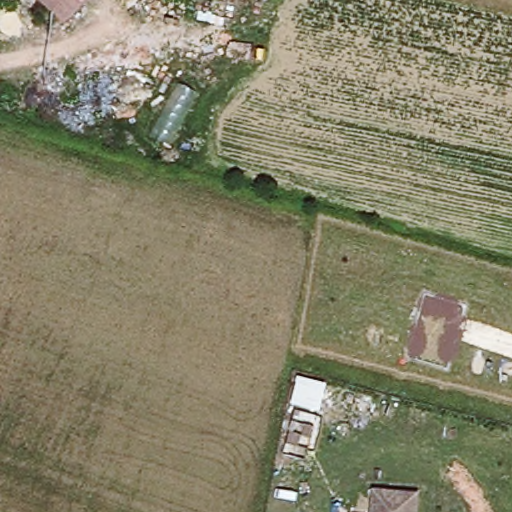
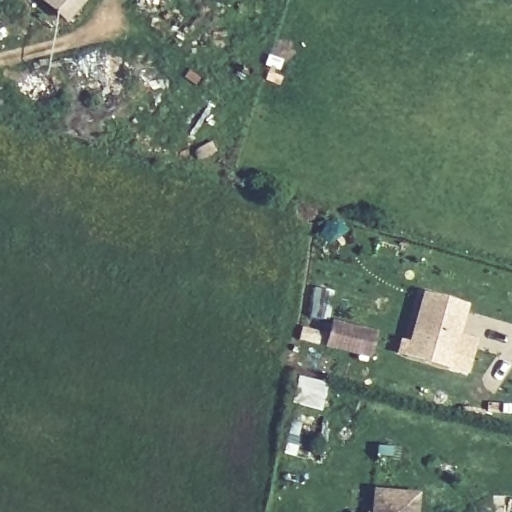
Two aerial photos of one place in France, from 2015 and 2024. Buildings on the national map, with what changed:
unchanged [(66,21),(42,0),(84,0),(66,21)]
new [(467,304),(449,368),(404,355),(422,292),(467,304)]
new [(331,320),(376,331),(369,359),(299,341),(302,327),(327,333),(331,320)]
unchanged [(417,495),(416,512),(372,512),(374,491),(417,495)]

